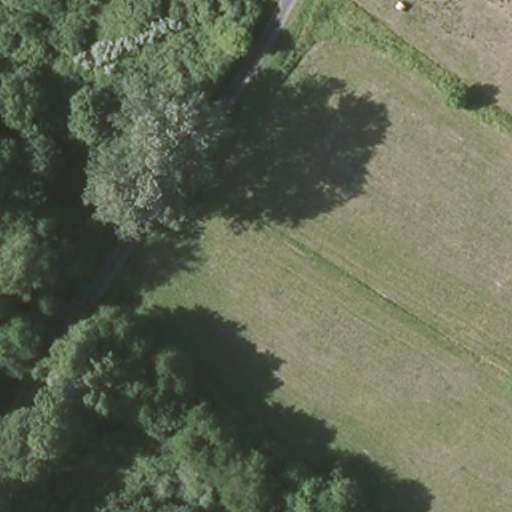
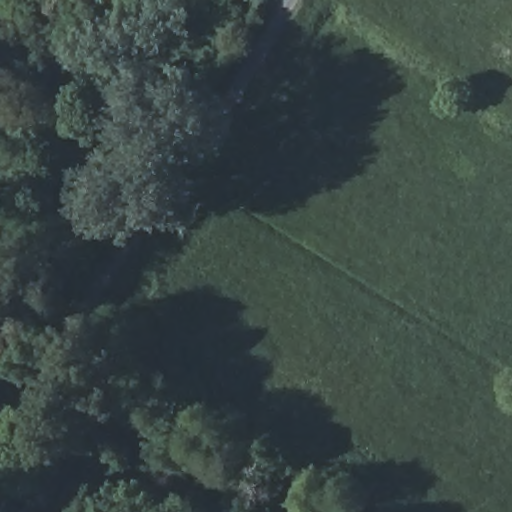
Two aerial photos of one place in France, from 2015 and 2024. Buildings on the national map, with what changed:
[]

